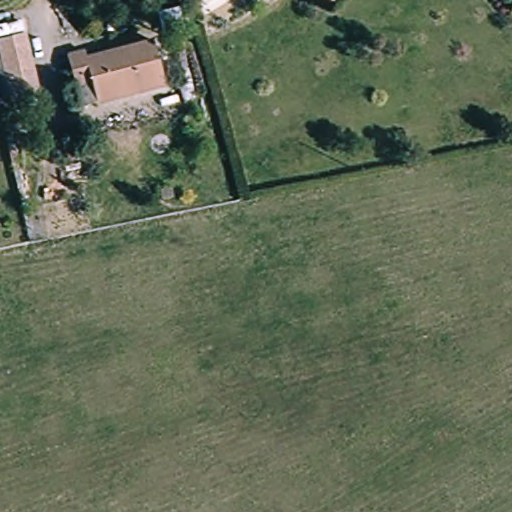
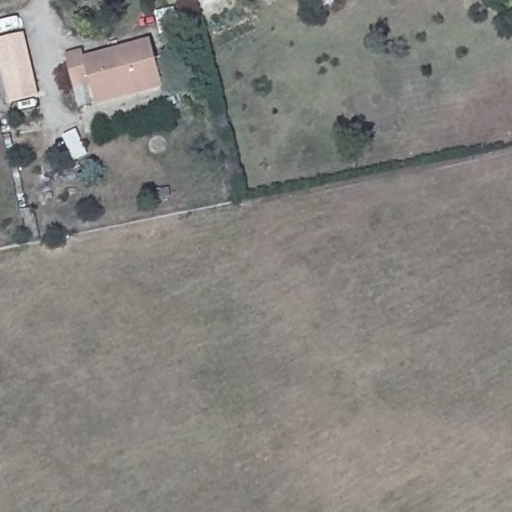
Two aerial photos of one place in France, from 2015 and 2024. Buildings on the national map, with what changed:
unchanged [(316,0),(329,0),(325,6),(316,0)]
unchanged [(5,84),(0,61),(0,36),(23,31),(33,78),(37,95),(9,101),(5,84)]
unchanged [(69,60),(86,56),(89,64),(153,49),(163,88),(98,104),(94,89),(76,93),(69,60)]

